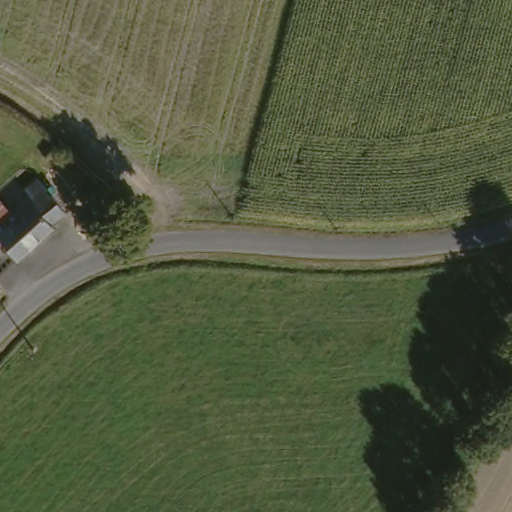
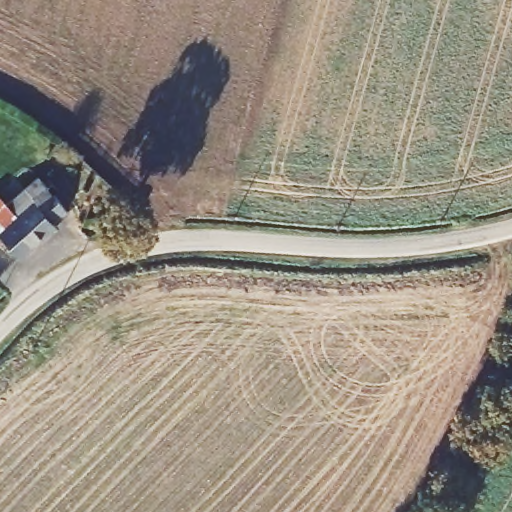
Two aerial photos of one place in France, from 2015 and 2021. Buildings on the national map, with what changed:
unchanged [(0,234),(0,203),(19,185),(40,206),(4,238),(0,234)]
unchanged [(40,206),(54,193),(74,214),(62,225),(64,228),(27,262),(4,238),(40,206)]

